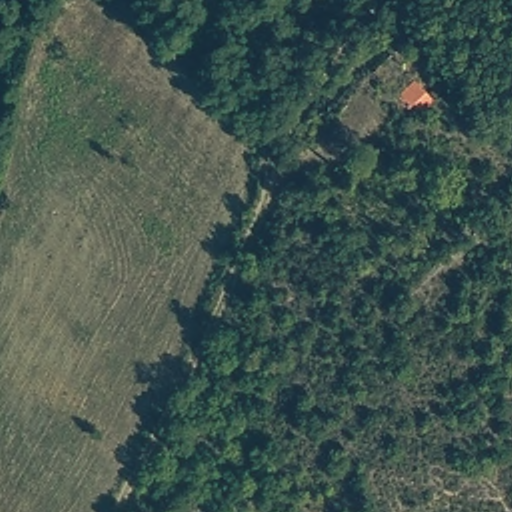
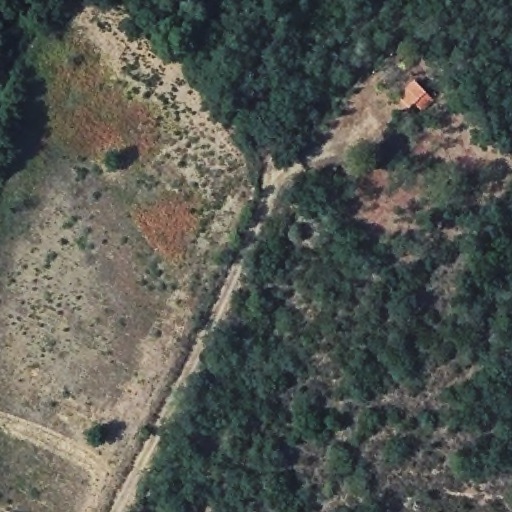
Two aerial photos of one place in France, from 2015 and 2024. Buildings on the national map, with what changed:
unchanged [(435,102),(423,113),(415,104),(406,113),(369,74),(390,54),(435,102)]

